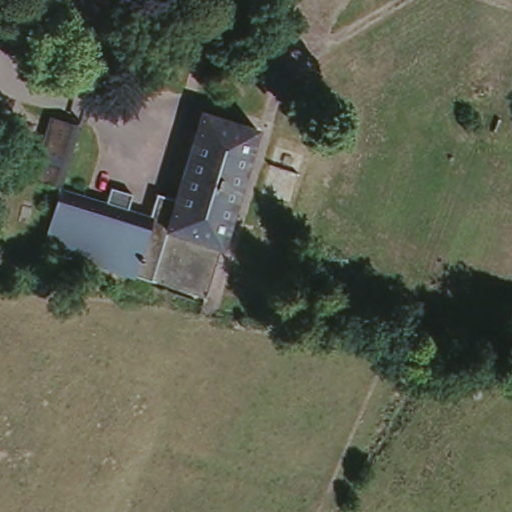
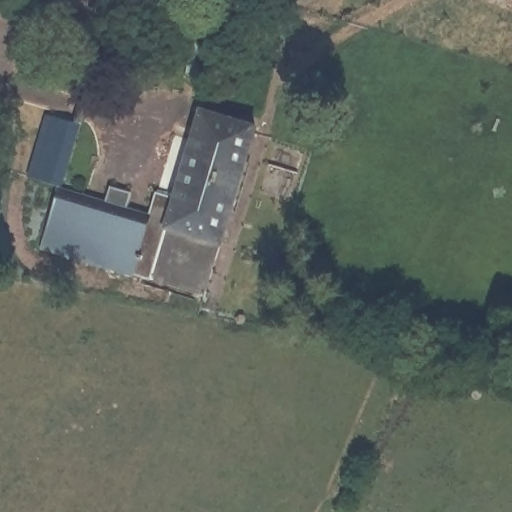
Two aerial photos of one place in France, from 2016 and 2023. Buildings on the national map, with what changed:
unchanged [(207,296),(39,252),(51,184),(27,177),(46,107),(80,117),(62,187),(165,216),(200,103),(258,125),(207,296)]

